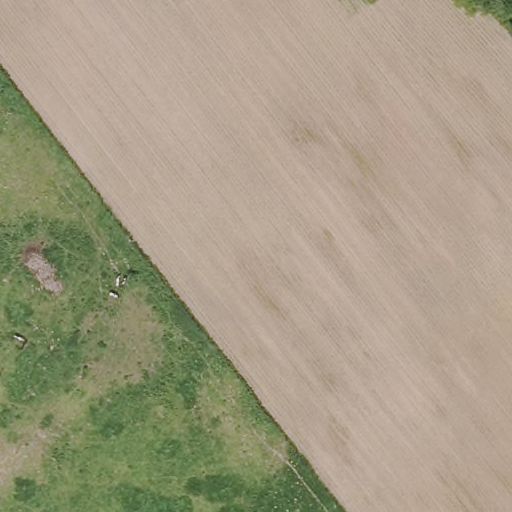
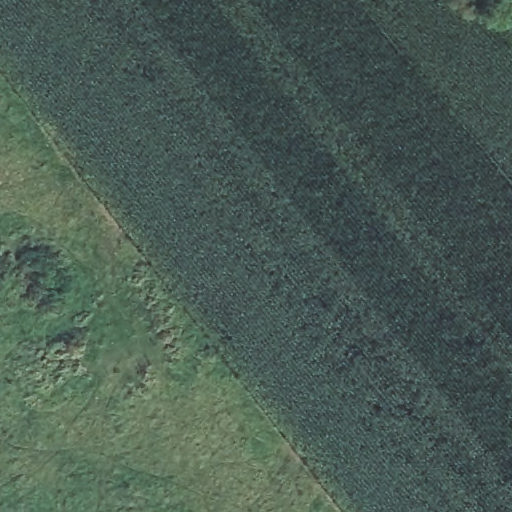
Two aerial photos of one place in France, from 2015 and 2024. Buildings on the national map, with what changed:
[]

